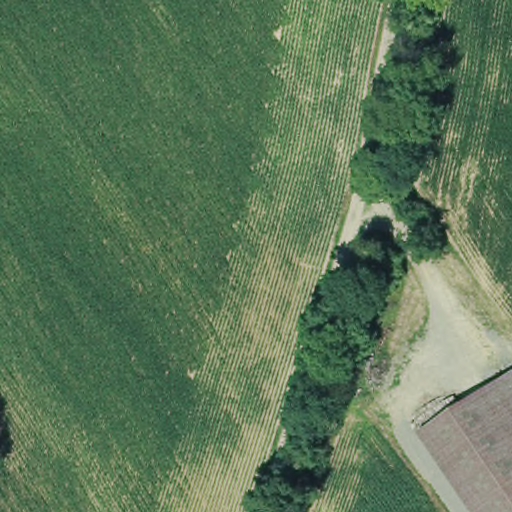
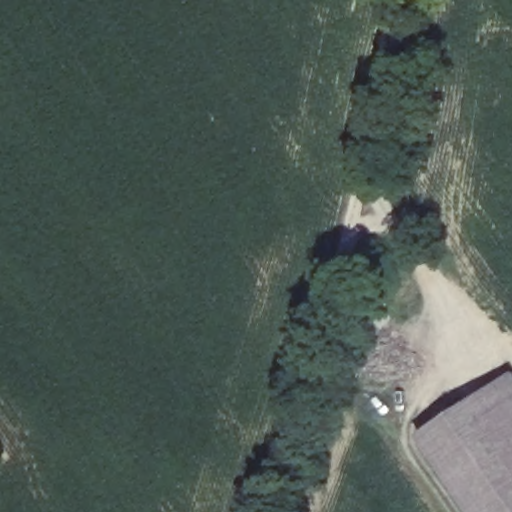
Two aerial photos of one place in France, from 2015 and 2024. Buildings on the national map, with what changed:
unchanged [(512,384),(512,512),(477,512),(429,439),(512,384)]

